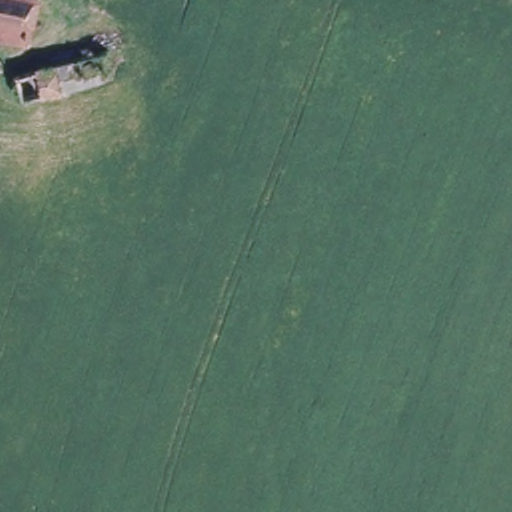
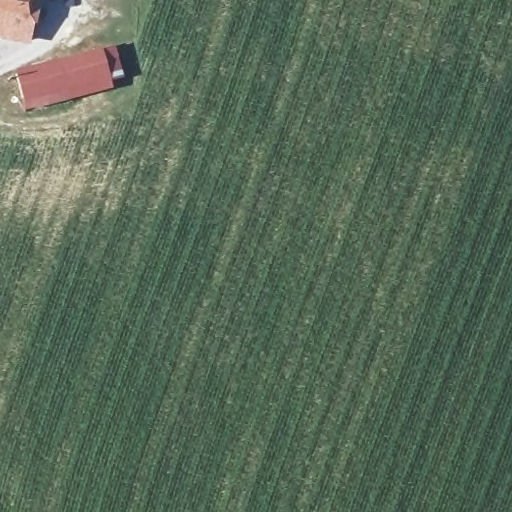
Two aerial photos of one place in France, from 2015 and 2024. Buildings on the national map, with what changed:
unchanged [(0,36),(0,0),(34,0),(26,42),(0,36)]
new [(102,50),(109,79),(24,103),(15,70),(102,50)]
demolished [(49,66),(56,92),(18,102),(11,75),(49,66)]

